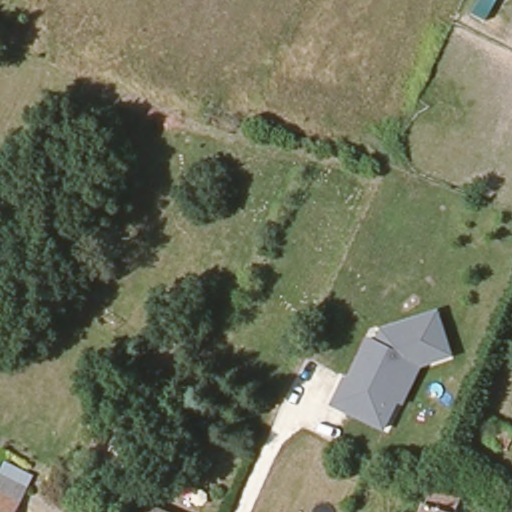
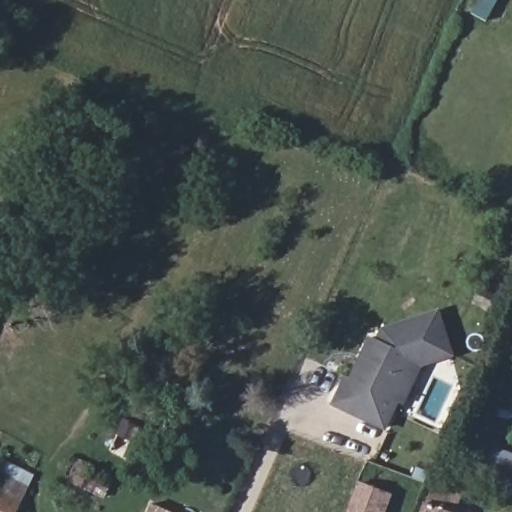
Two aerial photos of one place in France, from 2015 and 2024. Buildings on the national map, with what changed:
unchanged [(422,365),(404,406),(397,403),(385,429),(333,405),(345,376),(350,377),(370,336),(374,338),(381,327),(440,309),(453,355),(422,365)]
unchanged [(485,444),(495,418),(512,424),(512,448),(510,452),(485,444)]
unchanged [(0,479),(9,460),(37,474),(25,502),(20,512),(0,512),(0,479)]
new [(386,512),(347,512),(358,481),(392,494),(386,512)]
unchanged [(456,512),(421,512),(431,489),(460,501),(456,512)]
unchanged [(157,504),(172,511),(174,512),(153,512),(157,504)]

